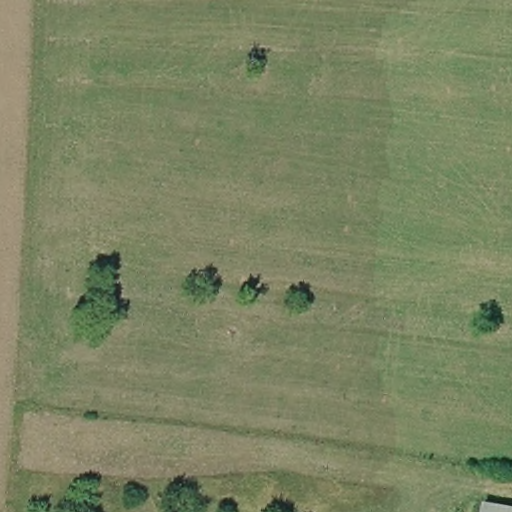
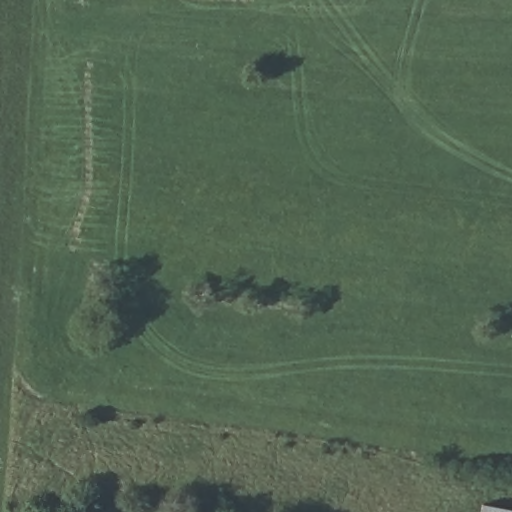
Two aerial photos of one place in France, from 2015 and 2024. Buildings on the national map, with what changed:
unchanged [(512,508),(512,512),(475,512),(477,501),(512,508)]

